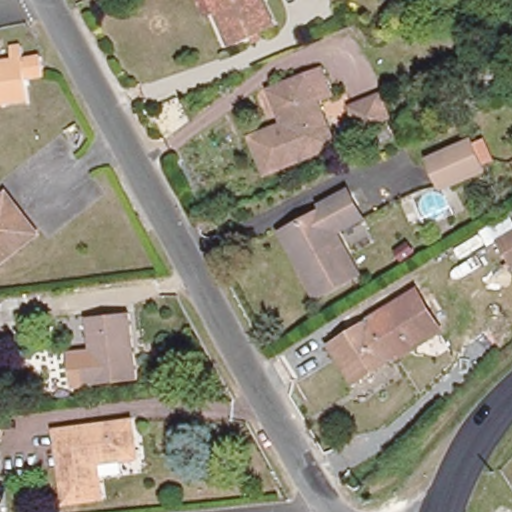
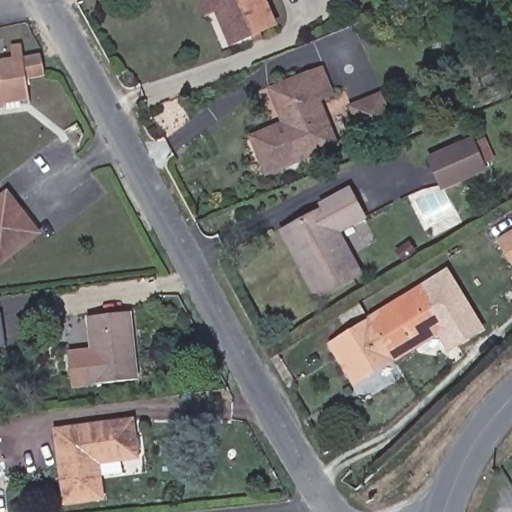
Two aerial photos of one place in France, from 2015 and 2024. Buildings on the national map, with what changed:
unchanged [(203,14),(199,0),(216,0),(219,8),(203,14)]
unchanged [(275,21),(230,37),(219,8),(216,0),(266,0),(275,21)]
unchanged [(24,78),(28,97),(0,102),(0,58),(7,57),(5,41),(19,40),(21,62),(42,59),(49,72),(24,78)]
unchanged [(274,92),(321,75),(331,101),(317,106),(330,147),(264,175),(246,135),(273,126),(284,122),(274,92)]
unchanged [(364,136),(352,107),(382,94),(394,123),(364,136)]
unchanged [(436,188),(422,157),(464,139),(466,144),(482,137),(490,159),(475,165),(476,171),(436,188)]
unchanged [(290,226),(326,207),(320,201),(349,186),(367,216),(340,230),(363,272),(319,299),(301,267),(278,232),(290,226)]
unchanged [(0,195),(4,191),(35,232),(0,260),(0,195)]
unchanged [(504,260),(488,234),(512,220),(512,256),(504,260)]
new [(408,298),(406,294),(448,268),(485,330),(448,353),(436,336),(432,339),(430,335),(408,298)]
unchanged [(430,335),(366,373),(344,335),(408,298),(430,335)]
unchanged [(130,313),(137,380),(92,384),(70,386),(67,352),(89,350),(86,315),(130,313)]
unchanged [(132,417),(135,452),(100,453),(104,492),(76,495),(69,423),(132,417)]

